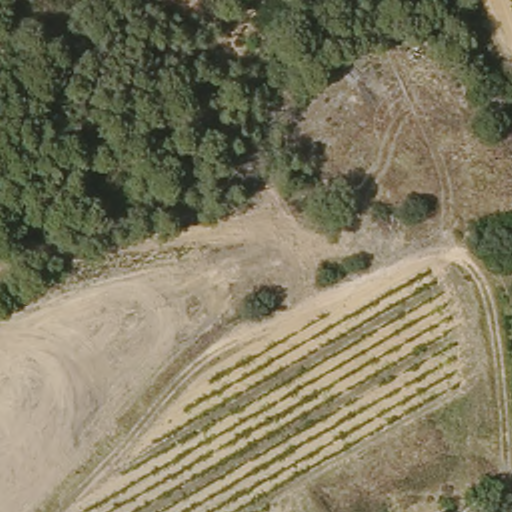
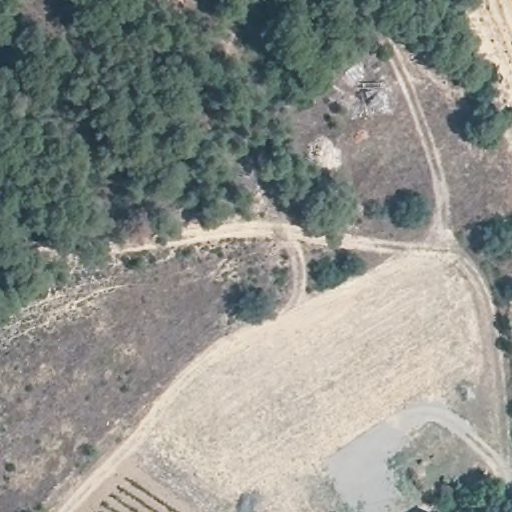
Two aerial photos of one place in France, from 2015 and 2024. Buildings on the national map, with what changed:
unchanged [(445,512),(443,512),(445,511),(445,512)]

